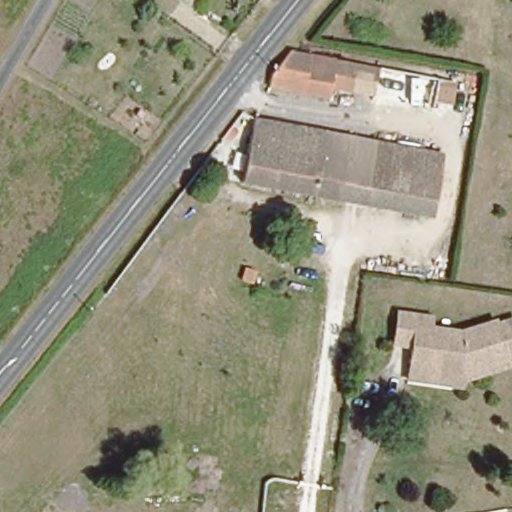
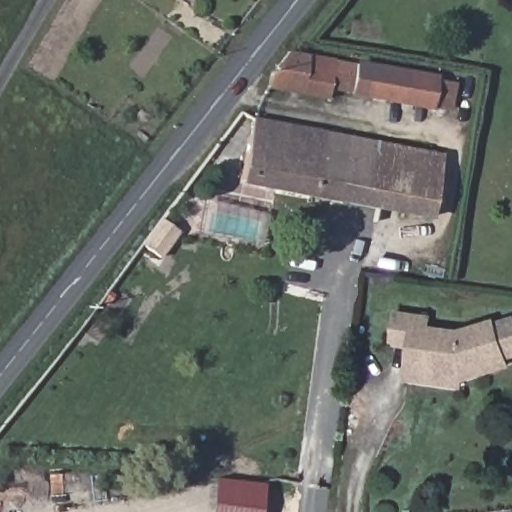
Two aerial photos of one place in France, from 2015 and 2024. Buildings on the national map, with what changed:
unchanged [(174,0),(172,3),(168,0),(174,0)]
unchanged [(283,65),(295,51),(402,70),(402,73),(398,89),(365,83),(362,91),(350,89),(340,86),(338,97),(280,86),(283,65)]
new [(350,89),(362,91),(365,83),(398,89),(402,73),(402,70),(440,76),(439,80),(456,83),(451,111),(433,108),(364,96),(349,94),(350,89)]
unchanged [(445,155),(432,215),(273,184),(284,126),(445,155)]
unchanged [(459,390),(403,383),(402,382),(403,368),(406,343),(388,342),(392,313),(392,310),(419,313),(425,314),(423,327),(455,330),(488,319),(490,324),(507,318),(512,331),(512,353),(500,358),(501,364),(472,374),(474,377),(462,382),(459,390)]
new [(262,512),(210,512),(214,480),(265,485),(262,512)]

